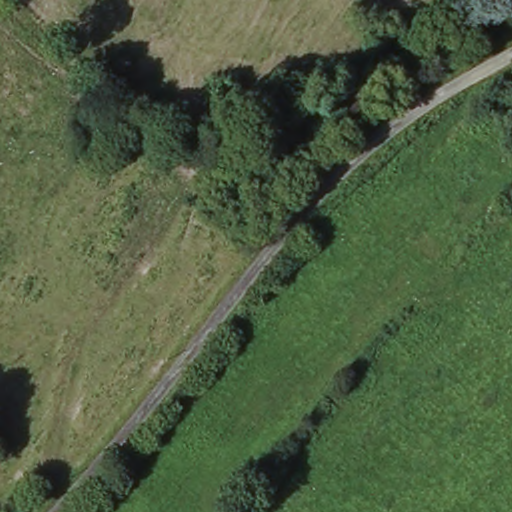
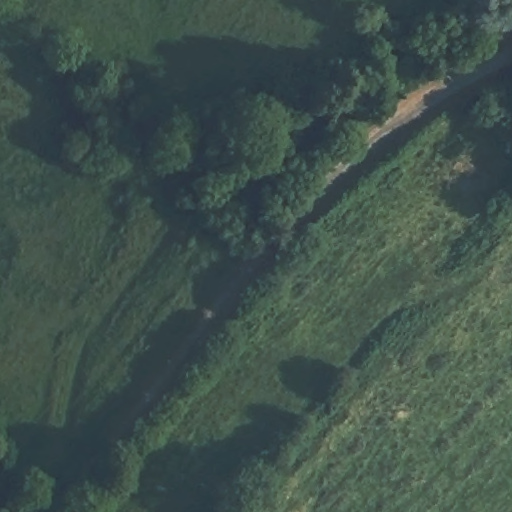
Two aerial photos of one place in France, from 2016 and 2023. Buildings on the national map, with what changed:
unchanged [(345,80),(371,102),(356,120),(331,98),(345,80)]
unchanged [(312,152),(324,137),(337,150),(324,163),(312,152)]

